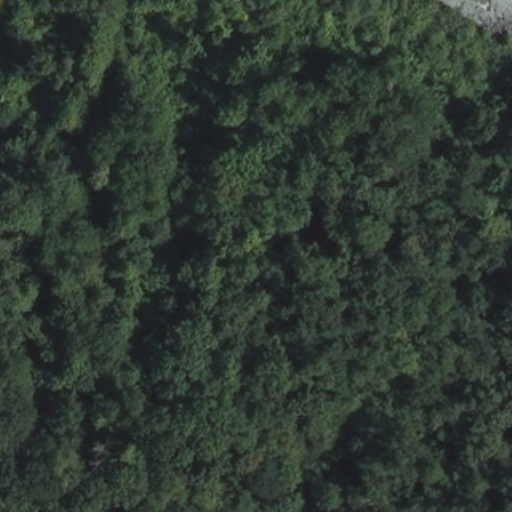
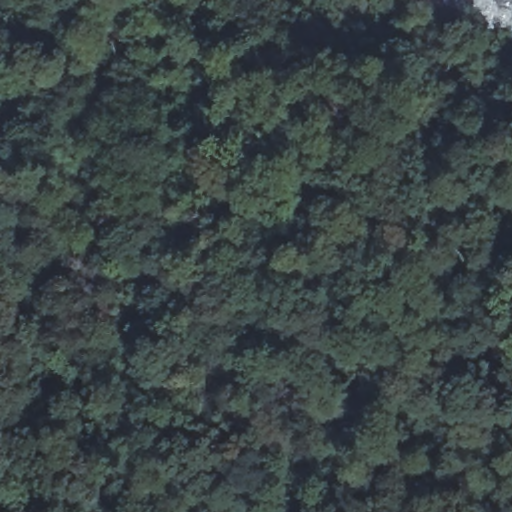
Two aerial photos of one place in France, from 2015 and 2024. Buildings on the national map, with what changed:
[]

